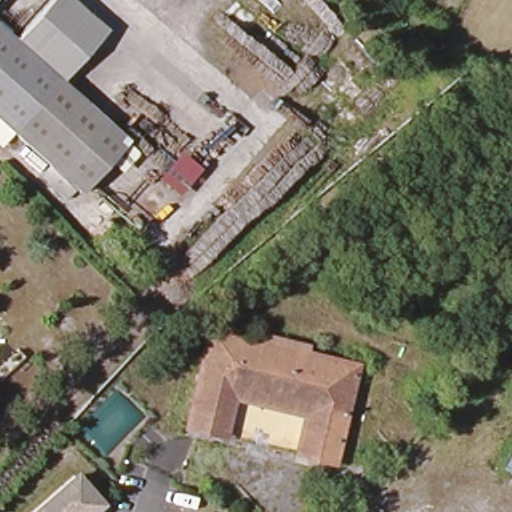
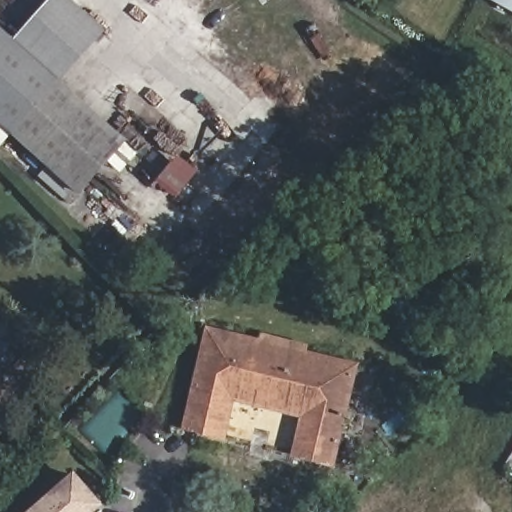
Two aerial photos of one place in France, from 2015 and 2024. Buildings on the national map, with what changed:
unchanged [(58,0),(76,0),(109,31),(63,83),(19,43),(58,0)]
new [(512,0),(512,10),(494,0),(512,0)]
unchanged [(19,43),(63,83),(17,135),(0,120),(0,26),(19,43)]
unchanged [(121,135),(74,188),(17,135),(63,83),(121,135)]
unchanged [(326,465),(288,454),(299,415),(228,395),(216,436),(181,426),(209,329),(352,371),(326,465)]
unchanged [(76,472),(87,485),(91,482),(104,498),(96,504),(86,512),(28,512),(76,472)]

